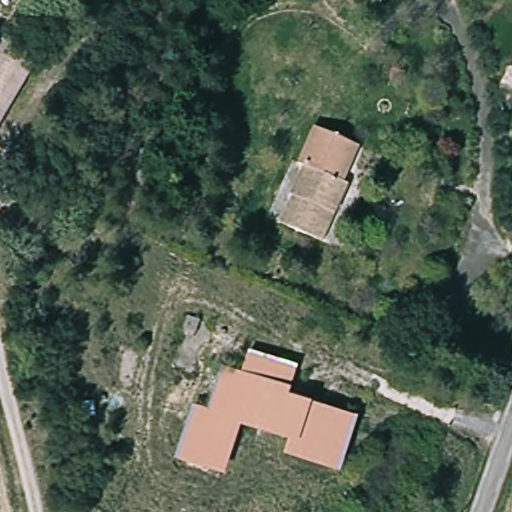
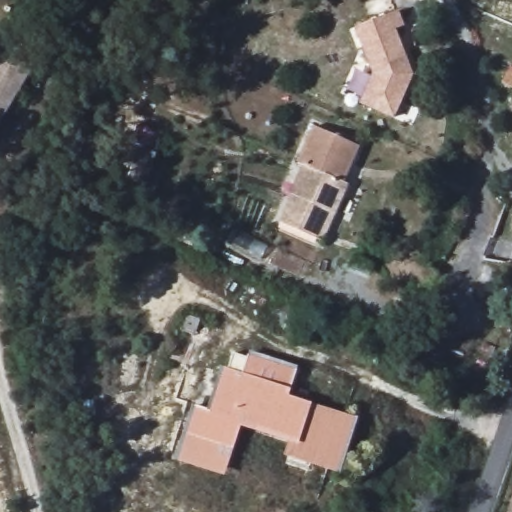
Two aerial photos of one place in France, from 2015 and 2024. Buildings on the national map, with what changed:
new [(390,113),(357,97),(369,68),(353,22),(395,6),(401,21),(393,25),(410,70),(405,80),(390,113)]
unchanged [(42,60),(0,126),(0,52),(8,40),(42,60)]
unchanged [(325,242),(289,226),(312,173),(303,169),(319,131),(365,151),(358,168),(350,187),(355,190),(342,220),(331,245),(325,242)]
unchanged [(429,281),(385,275),(375,272),(380,249),(392,251),(434,260),(429,281)]
unchanged [(333,467),(332,467),(290,454),(294,440),(238,422),(222,472),(182,460),(198,409),(212,413),(224,375),(240,380),(247,358),(294,373),(285,402),(347,422),(333,467)]

